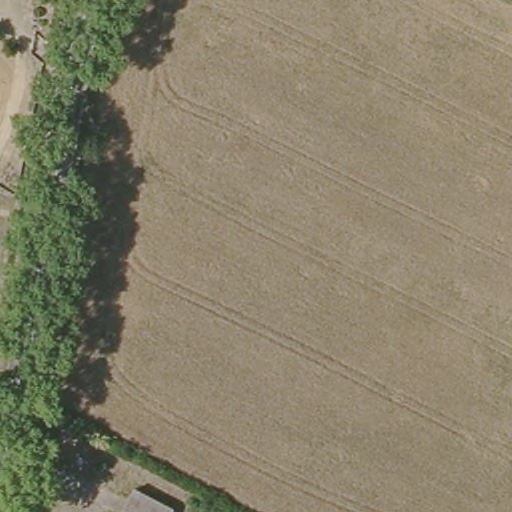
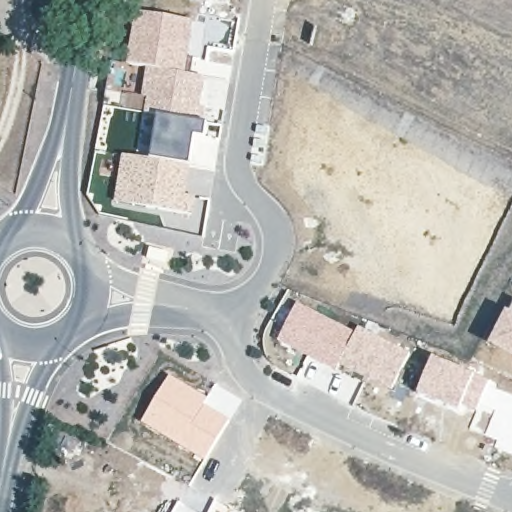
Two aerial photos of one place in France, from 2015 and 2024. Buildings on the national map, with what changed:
new [(135,10),(195,21),(187,72),(145,68),(125,64),(135,10)]
new [(207,108),(204,120),(202,119),(157,114),(145,114),(146,99),(142,98),(147,68),(187,72),(205,77),(200,106),(207,108)]
new [(157,114),(202,119),(207,121),(205,138),(197,137),(192,167),(149,157),(157,114)]
new [(121,153),(149,157),(192,167),(188,193),(195,195),(190,216),(112,204),(121,153)]
new [(298,303),(354,331),(339,367),(336,372),(277,341),(298,303)]
new [(490,347),(507,312),(509,313),(512,307),(512,358),(490,347)]
new [(410,354),(392,391),(340,363),(354,331),(359,327),(410,354)]
new [(432,356),(489,380),(488,384),(475,413),(462,408),(460,413),(415,394),(432,356)]
new [(205,461),(142,423),(171,377),(208,400),(205,406),(230,420),(205,461)]
new [(475,413),(488,384),(512,394),(512,453),(494,446),(496,441),(469,428),(475,413)]
unchanged [(173,508),(171,512),(125,512),(136,489),(173,508)]
new [(223,512),(221,512),(222,511),(223,512)]

